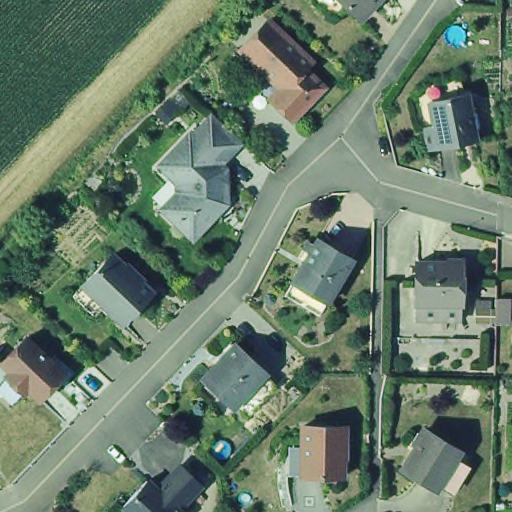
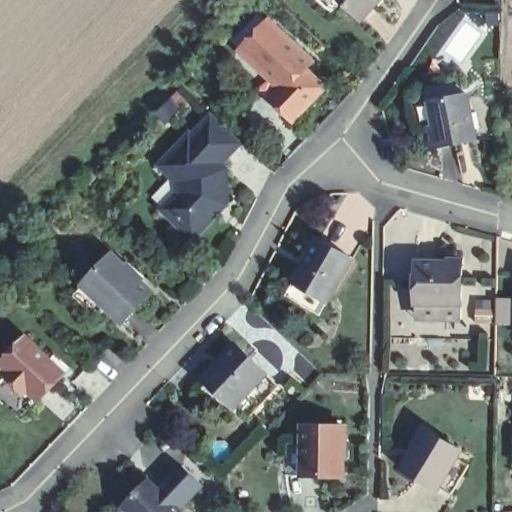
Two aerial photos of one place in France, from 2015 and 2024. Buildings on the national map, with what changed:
unchanged [(361,12),(348,0),(371,0),(361,12)]
unchanged [(271,21),(286,35),(287,32),(303,47),(301,49),(312,59),(305,67),(323,84),(292,117),(272,99),(284,87),(271,76),(272,75),(262,65),(259,67),(242,51),(271,21)]
unchanged [(466,92),(474,138),(427,148),(423,126),(432,124),(427,100),(466,92)]
unchanged [(186,178),(186,174),(165,154),(194,123),(196,124),(217,102),(246,130),(225,152),(231,157),(232,192),(197,227),(170,201),(167,198),(186,178)]
unchanged [(351,263),(326,307),(292,286),(317,243),(351,263)]
unchanged [(157,290),(127,321),(87,283),(117,252),(157,290)]
unchanged [(418,317),(419,303),(420,261),(466,262),(465,303),(464,318),(418,317)]
unchanged [(507,299),(507,321),(494,320),(494,299),(507,299)]
unchanged [(69,367),(44,393),(32,382),(29,386),(11,369),(15,365),(6,357),(31,331),(69,367)]
unchanged [(210,371),(241,339),(270,366),(240,398),(232,398),(226,392),(207,374),(210,371)]
unchanged [(342,420),(342,470),(300,470),(300,420),(342,420)]
unchanged [(429,429),(463,449),(440,488),(406,468),(429,429)]
unchanged [(176,503),(180,507),(175,512),(135,512),(122,500),(146,474),(156,484),(180,459),(200,478),(176,503)]
unchanged [(512,510),(512,512),(492,512),(512,510)]

